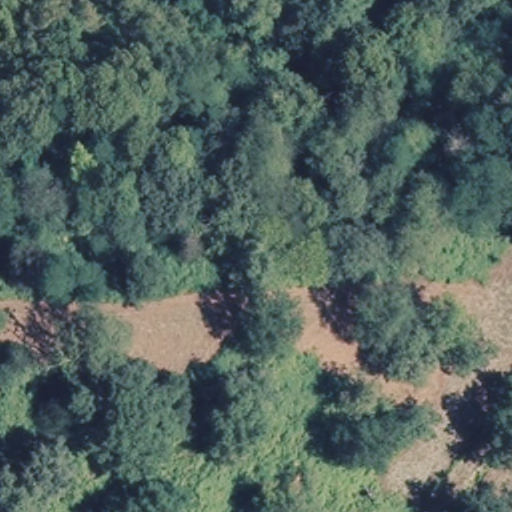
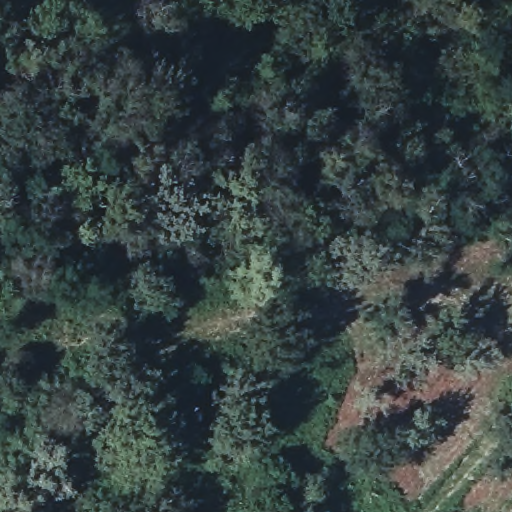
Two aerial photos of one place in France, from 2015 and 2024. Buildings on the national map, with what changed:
[]

